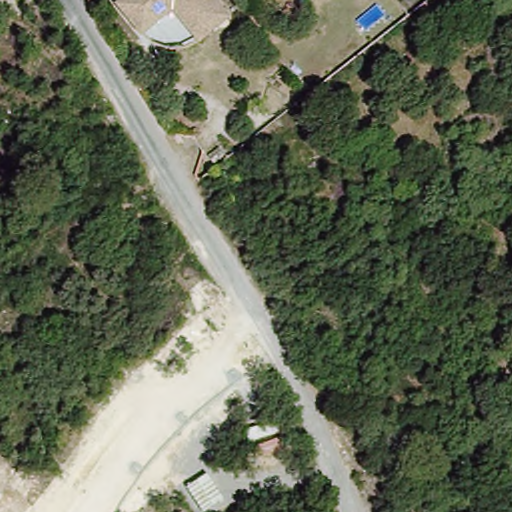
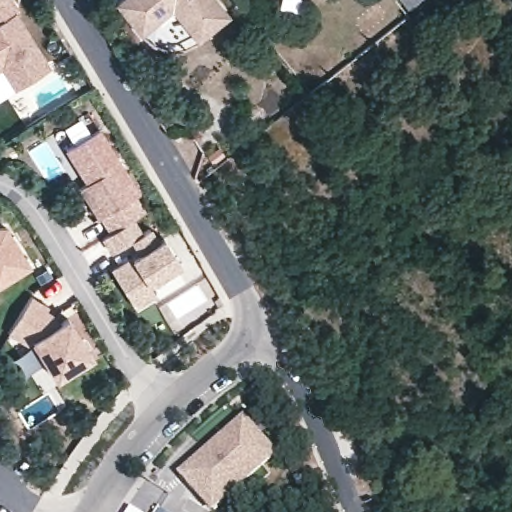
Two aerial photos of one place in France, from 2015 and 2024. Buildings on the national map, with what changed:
new [(13,0),(18,8),(14,10),(49,67),(17,87),(3,65),(0,67),(0,0),(13,0)]
unchanged [(118,3),(122,0),(218,0),(230,14),(198,39),(173,8),(157,21),(142,33),(137,28),(118,3)]
new [(100,127),(139,190),(135,193),(146,209),(133,218),(112,231),(101,215),(99,216),(80,186),(88,181),(67,147),(100,127)]
new [(112,231),(133,218),(141,232),(150,227),(158,240),(164,236),(180,261),(148,281),(155,292),(135,304),(112,267),(132,255),(133,256),(140,251),(132,238),(112,250),(103,236),(112,231)]
new [(7,227),(32,269),(0,287),(0,227),(7,227)]
new [(31,295),(48,305),(46,309),(54,314),(59,322),(67,317),(89,355),(53,376),(31,339),(26,342),(9,331),(31,295)]
new [(180,472),(245,416),(278,453),(212,510),(180,472)]

